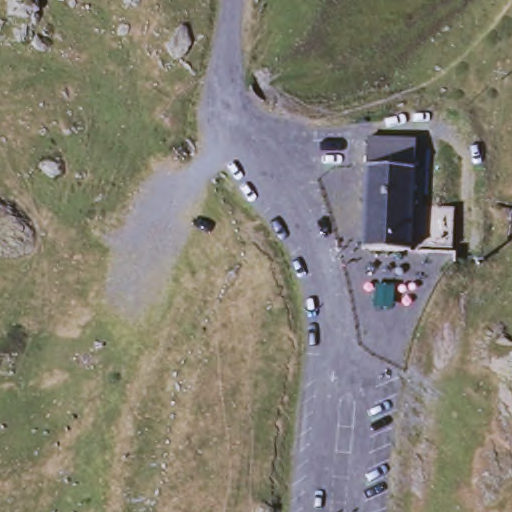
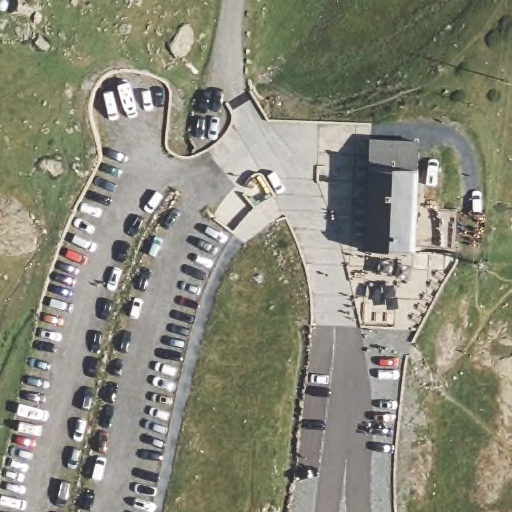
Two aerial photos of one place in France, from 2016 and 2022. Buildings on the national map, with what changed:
unchanged [(415,145),(412,212),(411,256),(364,253),(366,143),(415,145)]

